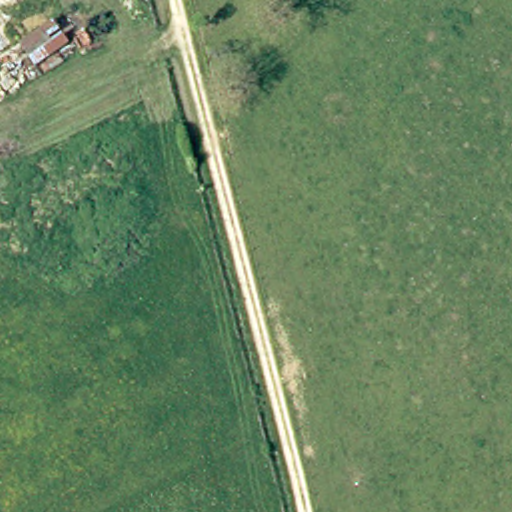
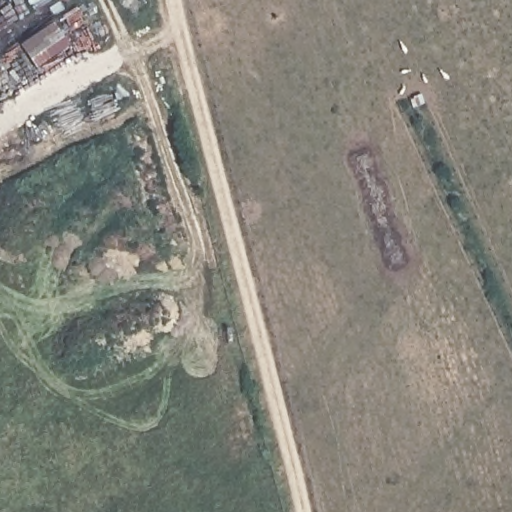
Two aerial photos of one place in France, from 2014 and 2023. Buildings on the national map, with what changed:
unchanged [(73,48),(37,73),(21,45),(54,25),(73,48)]

